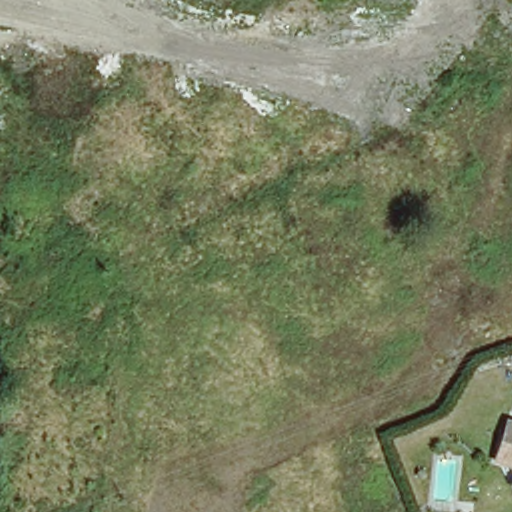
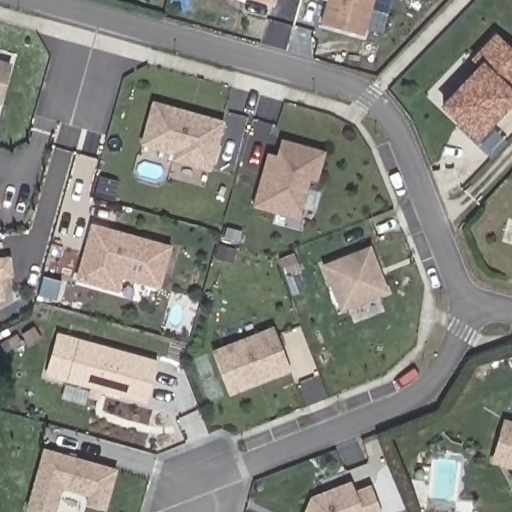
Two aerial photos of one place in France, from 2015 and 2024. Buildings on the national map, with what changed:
new [(277,4),(261,0),(278,0),(277,4)]
new [(365,36),(321,24),(328,0),(375,0),(365,36)]
new [(512,94),(512,99),(477,136),(445,104),(482,64),(477,58),(497,36),(512,51),(512,87),(509,90),(512,94)]
new [(12,64),(1,104),(0,104),(0,60),(12,64)]
new [(174,153),(142,145),(153,102),(226,120),(212,171),(173,160),(174,153)]
new [(326,152),(318,181),(312,180),(301,219),(254,206),(267,154),(277,156),(282,140),(326,152)]
new [(1,207),(0,208),(0,204),(1,207)]
new [(76,280),(91,222),(173,245),(161,288),(123,279),(119,292),(76,280)]
new [(390,293),(340,312),(322,265),(372,246),(390,293)]
new [(11,275),(1,276),(2,298),(0,298),(0,258),(10,256),(11,275)]
new [(292,371),(230,396),(212,350),(274,326),(292,371)]
new [(159,359),(147,403),(68,381),(80,338),(159,359)]
unchanged [(512,468),(489,459),(503,425),(512,429),(512,468)]
new [(117,470),(106,508),(88,504),(91,495),(62,486),(55,512),(40,512),(29,508),(44,449),(117,470)]
new [(352,480),(355,489),(372,483),(382,512),(305,512),(312,495),(352,480)]

